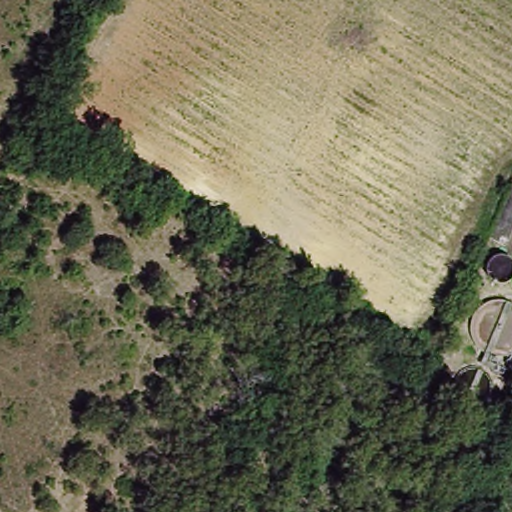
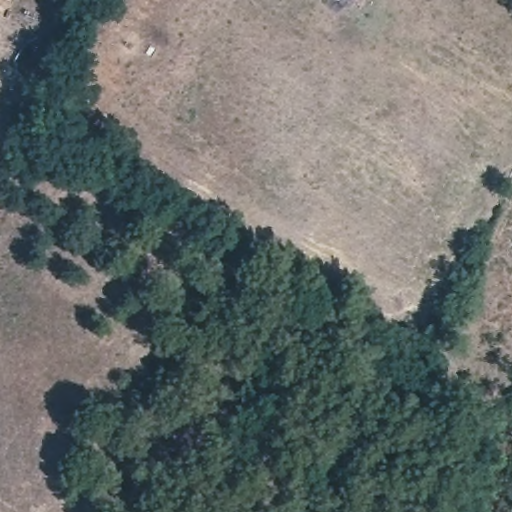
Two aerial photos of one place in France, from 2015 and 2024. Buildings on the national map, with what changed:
unchanged [(460,333),(452,350),(442,347),(449,329),(460,333)]

